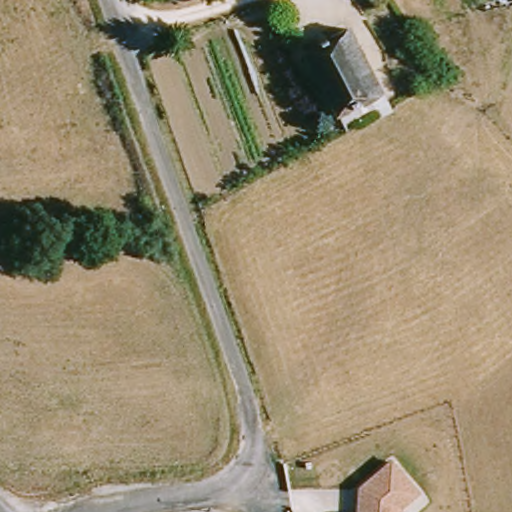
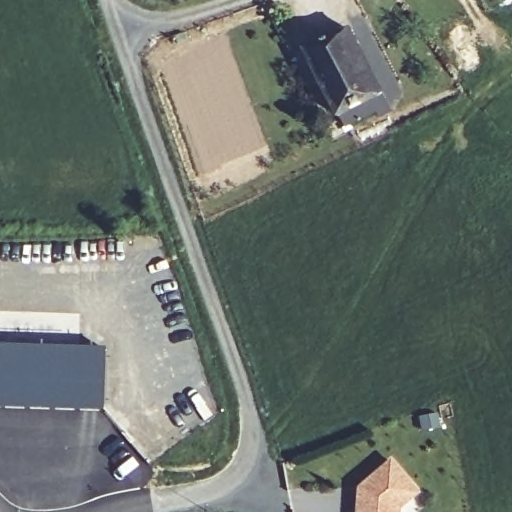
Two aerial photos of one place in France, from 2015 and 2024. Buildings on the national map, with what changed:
unchanged [(509,0),(512,0),(512,5),(509,0)]
unchanged [(303,56),(330,44),(349,35),(380,99),(335,121),(303,56)]
new [(105,347),(104,410),(0,408),(0,344),(55,345),(105,347)]
unchanged [(401,510),(401,512),(358,512),(360,486),(393,460),(421,493),(401,510)]

